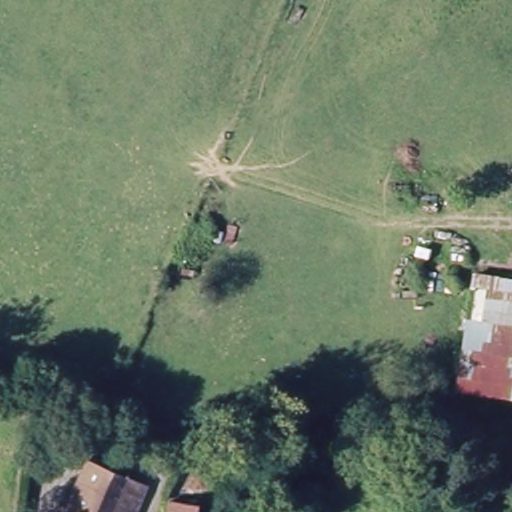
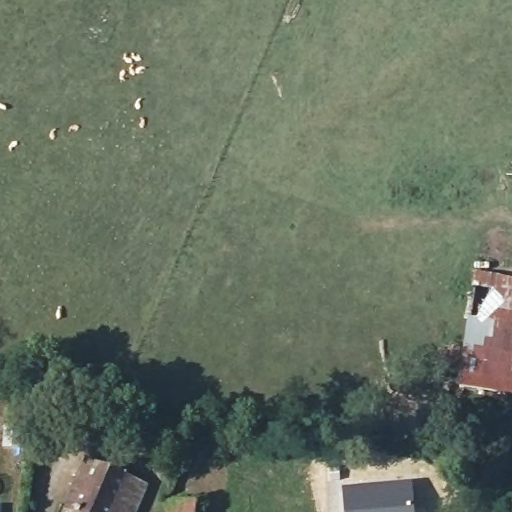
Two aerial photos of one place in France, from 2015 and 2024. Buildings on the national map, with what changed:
unchanged [(472,276),(512,281),(512,402),(458,396),(472,276)]
unchanged [(142,512),(71,512),(89,465),(151,488),(142,512)]
new [(414,512),(344,512),(342,486),(412,482),(414,512)]
unchanged [(203,506),(202,512),(169,512),(170,504),(203,506)]

